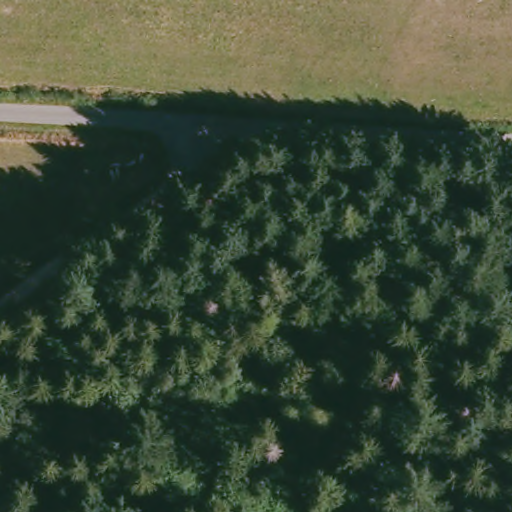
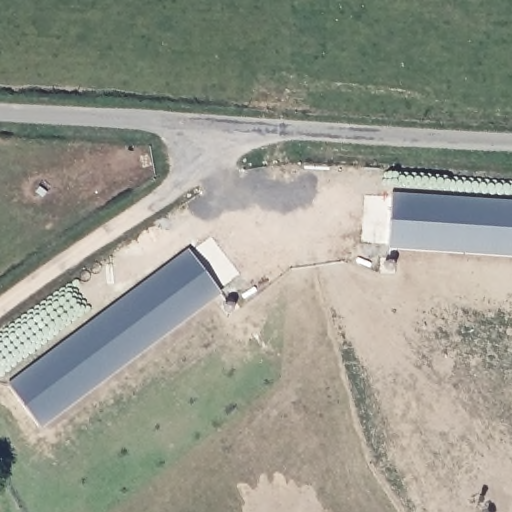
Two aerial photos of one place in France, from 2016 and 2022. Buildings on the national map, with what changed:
new [(392,200),(512,207),(512,253),(390,245),(392,200)]
new [(193,256),(220,292),(40,428),(12,390),(193,256)]

